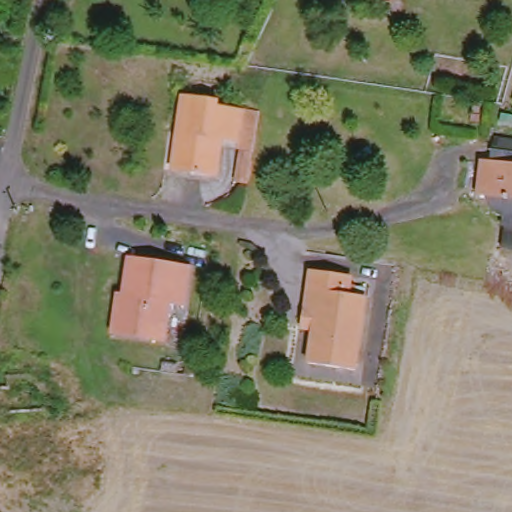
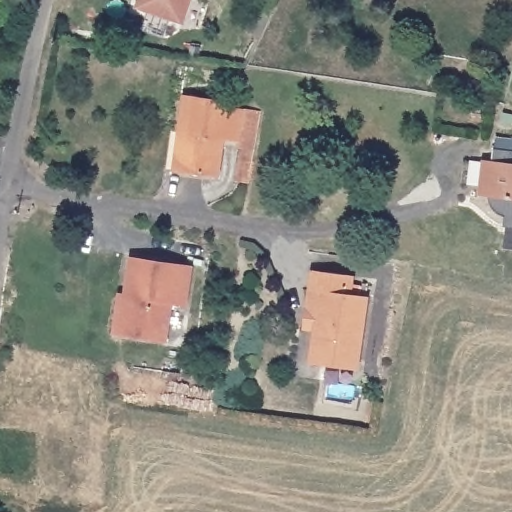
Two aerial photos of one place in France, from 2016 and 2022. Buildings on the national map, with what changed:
new [(184,23),(136,7),(139,0),(191,0),(184,23)]
unchanged [(241,177),(230,174),(236,145),(229,143),(231,138),(218,135),(210,173),(171,166),(178,131),(171,128),(179,89),(214,97),(213,102),(238,106),(254,109),(241,177)]
unchanged [(504,233),(506,227),(497,224),(491,219),(486,205),(489,196),(482,193),(487,171),(494,172),(497,158),(512,162),(512,235),(504,233)]
unchanged [(117,289),(124,255),(184,266),(176,303),(166,300),(158,335),(118,328),(109,326),(117,289)]
unchanged [(344,278),(349,279),(348,289),(360,291),(351,363),(304,359),(309,323),(297,321),(299,303),(305,266),(344,272),(344,278)]

